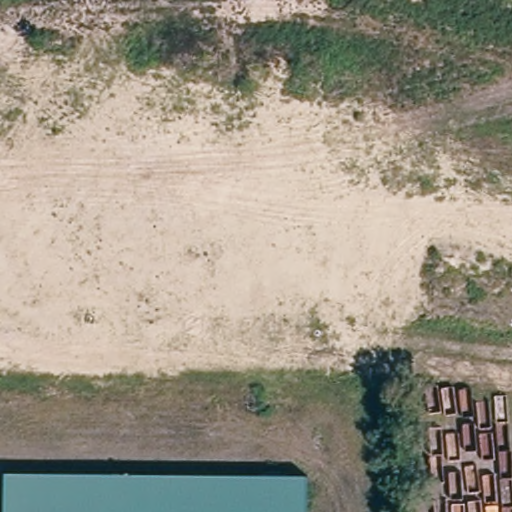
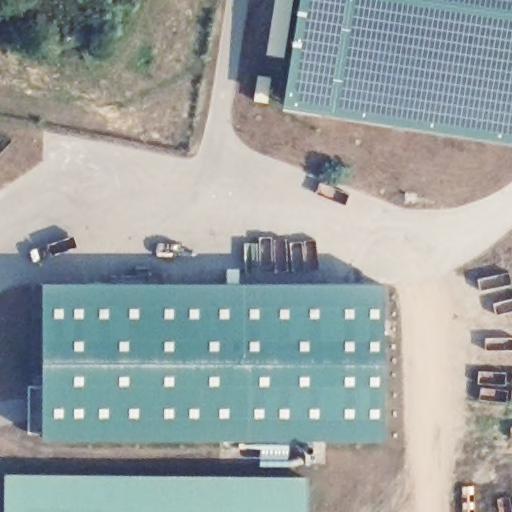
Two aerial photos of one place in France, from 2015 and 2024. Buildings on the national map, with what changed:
new [(276,0),(293,0),(285,52),(268,50),(276,0)]
new [(282,106),(299,0),(512,0),(512,141),(282,106)]
new [(259,71),(272,73),(268,98),(255,96),(259,71)]
new [(383,281),(386,440),(46,439),(43,281),(383,281)]
unchanged [(312,473),(312,512),(10,512),(11,467),(312,473)]

